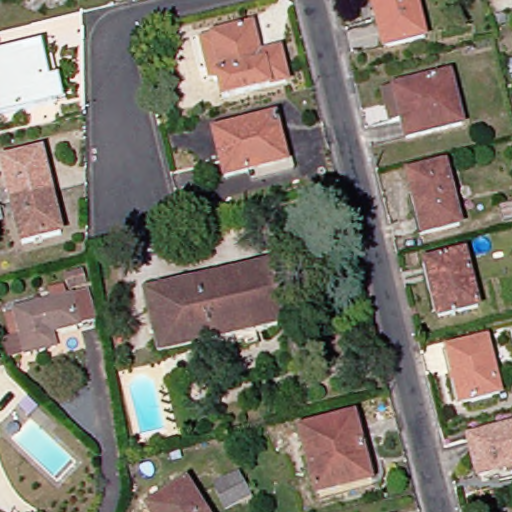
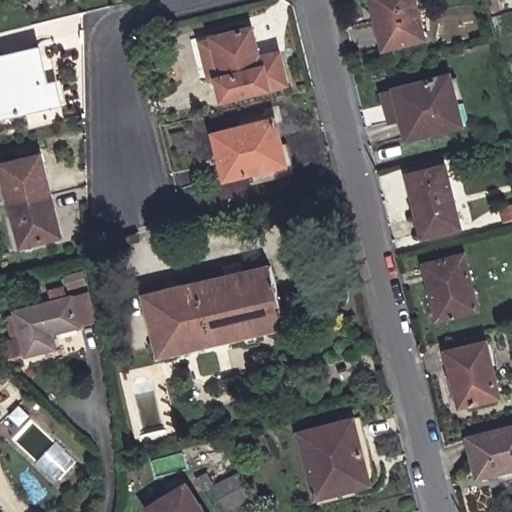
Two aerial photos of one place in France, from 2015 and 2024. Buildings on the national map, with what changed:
unchanged [(376,52),(362,0),(409,0),(420,40),(376,52)]
unchanged [(257,59),(278,54),(285,84),(221,100),(216,79),(206,80),(196,42),(211,38),(250,29),(257,59)]
unchanged [(34,51),(47,49),(60,109),(55,110),(0,122),(0,60),(34,51)]
unchanged [(440,85),(445,82),(450,100),(445,101),(452,130),(398,145),(392,125),(384,95),(394,92),(439,81),(440,85)]
unchanged [(276,124),(287,167),(222,184),(212,141),(276,124)]
unchanged [(0,170),(0,168),(39,158),(48,196),(9,206),(0,170)]
unchanged [(409,197),(414,195),(409,179),(445,170),(460,223),(428,231),(418,233),(409,197)]
unchanged [(48,196),(58,235),(18,245),(9,206),(48,196)]
unchanged [(424,286),(431,285),(425,263),(464,254),(476,304),(438,313),(434,299),(429,300),(424,286)]
unchanged [(278,330),(152,358),(138,298),(263,270),(278,330)]
unchanged [(82,295),(89,325),(47,335),(49,351),(23,356),(12,312),(82,295)]
unchanged [(371,335),(372,340),(370,344),(366,346),(360,345),(357,339),(359,333),(366,331),(371,335)]
unchanged [(487,342),(499,393),(460,402),(455,381),(447,382),(440,352),(487,342)]
unchanged [(182,375),(193,372),(194,381),(185,385),(182,375)]
unchanged [(338,492),(317,498),(300,433),(355,420),(368,474),(371,485),(338,492)]
unchanged [(500,480),(500,477),(491,479),(489,471),(478,474),(469,437),(512,426),(512,477),(500,480)]
unchanged [(240,476),(252,499),(225,512),(215,488),(240,476)]
unchanged [(143,511),(178,487),(194,512),(143,512),(143,511)]

